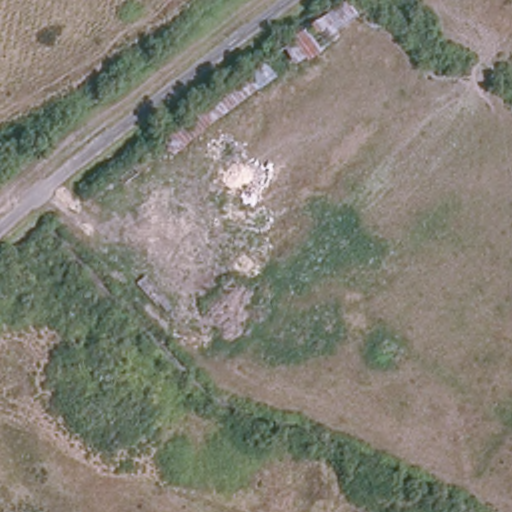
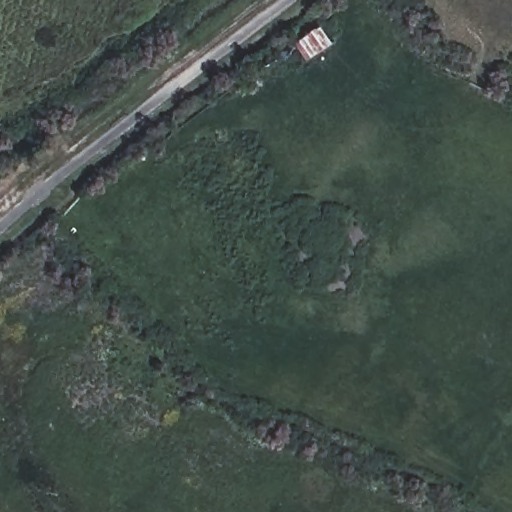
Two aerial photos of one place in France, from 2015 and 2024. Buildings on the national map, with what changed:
unchanged [(344,0),(346,0),(362,22),(310,56),(291,36),(344,0)]

